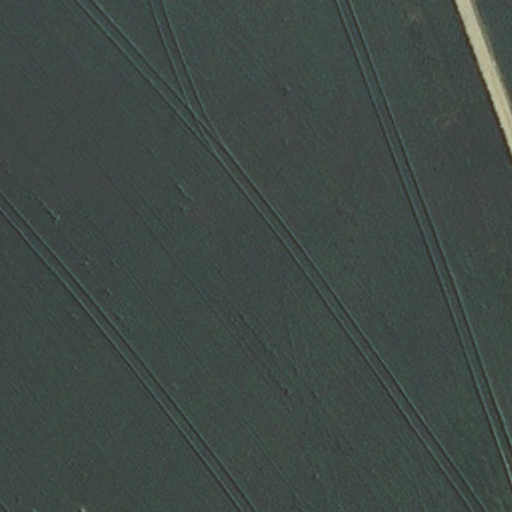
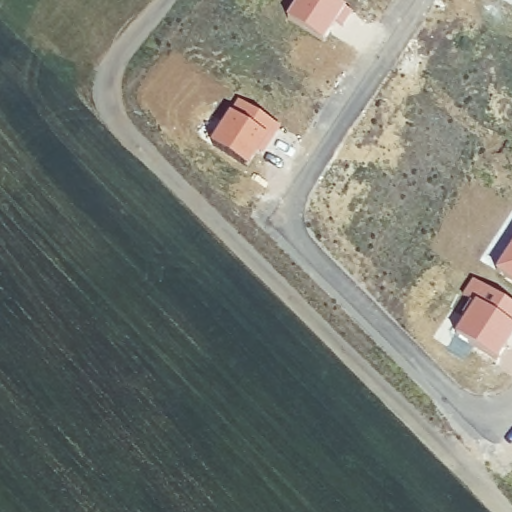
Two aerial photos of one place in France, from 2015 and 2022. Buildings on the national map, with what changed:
new [(345,4),(324,37),(287,12),(295,0),(339,0),(345,4)]
new [(273,122),(248,162),(211,139),(237,100),(273,122)]
new [(512,241),(512,276),(495,266),(512,241)]
new [(512,329),(497,354),(455,328),(472,301),(462,293),(473,277),(512,302),(512,329)]

